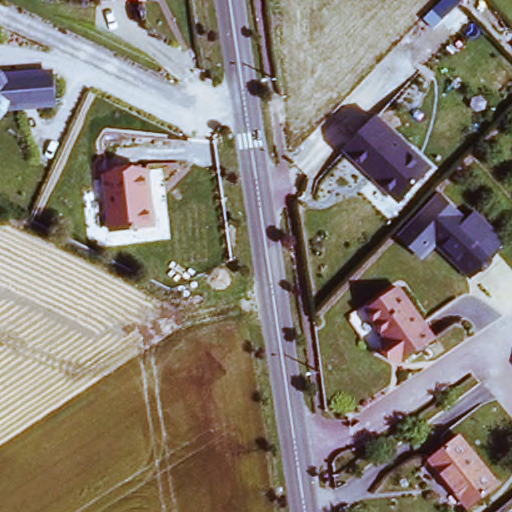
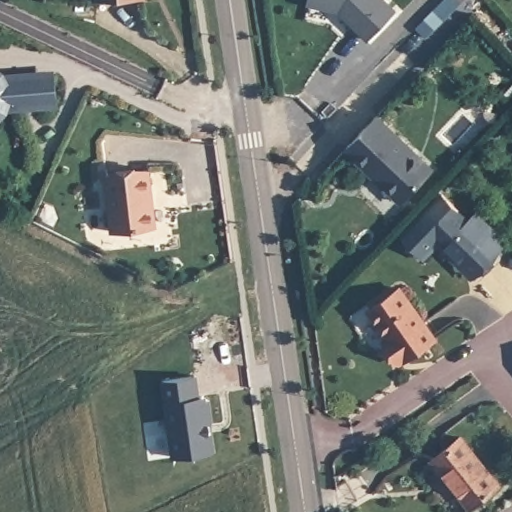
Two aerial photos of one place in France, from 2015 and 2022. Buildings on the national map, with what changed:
new [(308,0),(387,0),(397,9),(370,39),(340,10),(308,3),(308,0)]
unchanged [(56,107),(11,111),(0,123),(0,72),(5,75),(54,71),(56,107)]
unchanged [(347,152),(380,114),(435,167),(401,201),(347,152)]
unchanged [(152,187),(157,221),(117,227),(109,171),(152,165),(156,187),(152,187)]
unchanged [(424,261),(403,236),(441,194),(463,215),(469,208),(506,244),(472,280),(439,248),(424,261)]
unchanged [(392,346),(396,344),(376,307),(404,292),(433,343),(400,360),(392,346)]
new [(196,375),(201,396),(208,396),(215,453),(173,459),(162,380),(196,375)]
unchanged [(496,482),(471,506),(431,465),(456,441),(496,482)]

